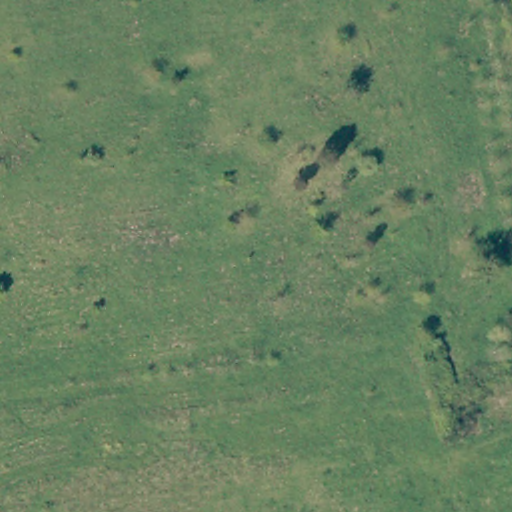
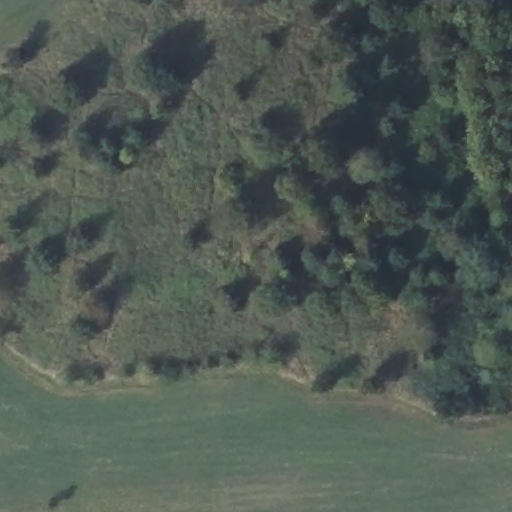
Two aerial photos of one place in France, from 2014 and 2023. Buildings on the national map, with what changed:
[]

